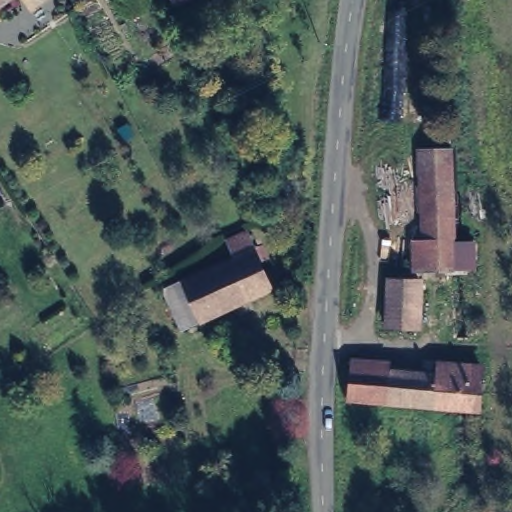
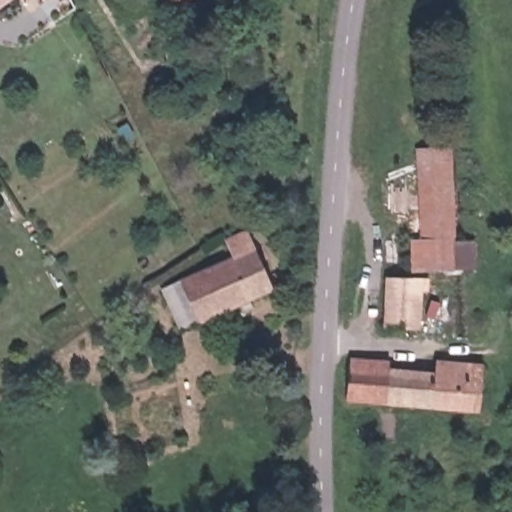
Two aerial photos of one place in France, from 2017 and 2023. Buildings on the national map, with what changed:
unchanged [(0,13),(0,0),(17,0),(0,13)]
unchanged [(169,9),(165,0),(190,0),(169,9)]
unchanged [(445,152),(448,241),(462,243),(461,267),(407,262),(404,151),(445,152)]
unchanged [(174,285),(186,280),(233,258),(227,241),(247,232),(274,290),(204,321),(193,326),(174,285)]
unchanged [(417,282),(415,328),(385,327),(389,281),(417,282)]
unchanged [(461,295),(460,310),(445,310),(446,294),(461,295)]
unchanged [(367,400),(366,365),(433,370),(435,363),(477,365),(473,413),(367,400)]

